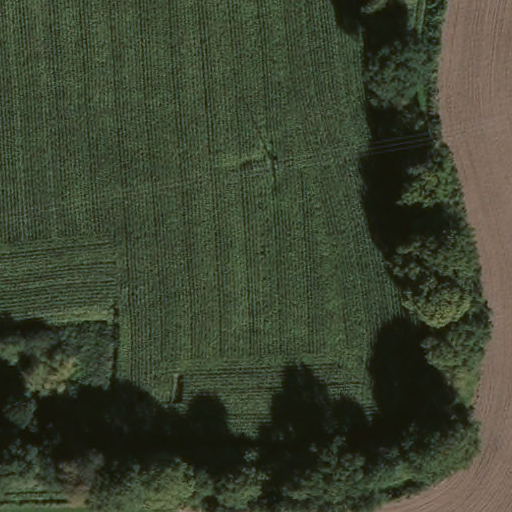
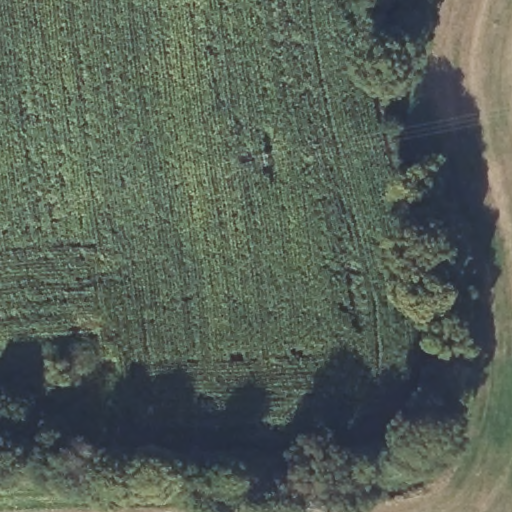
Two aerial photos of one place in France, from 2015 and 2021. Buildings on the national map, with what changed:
[]

